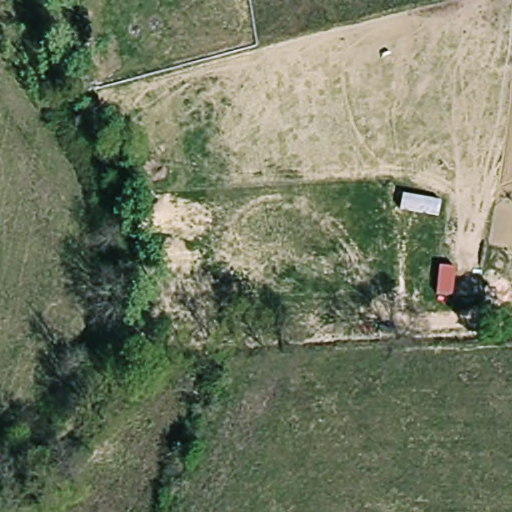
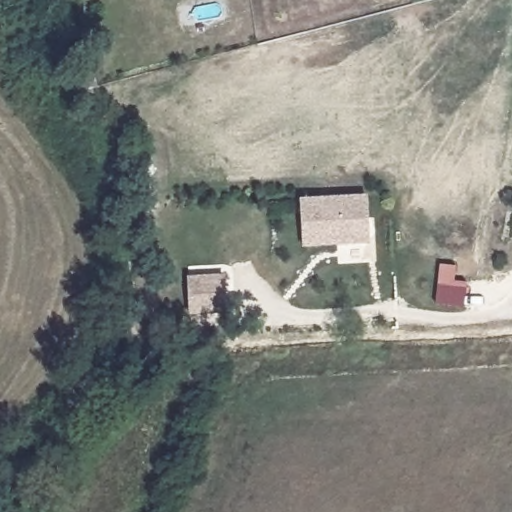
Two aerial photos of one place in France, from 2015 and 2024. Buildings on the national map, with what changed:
new [(302,246),(300,197),(367,195),(370,242),(302,246)]
new [(223,311),(189,312),(187,276),(222,275),(223,311)]

